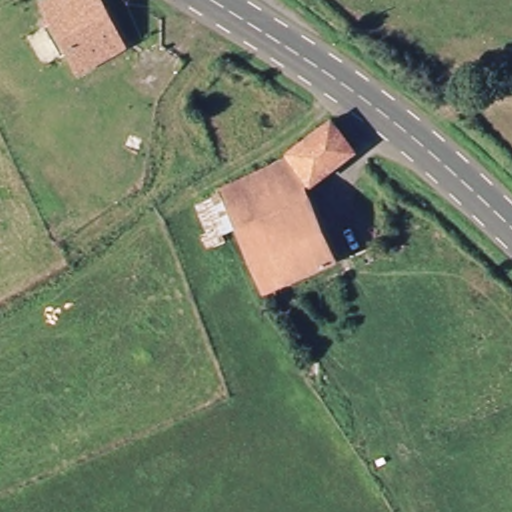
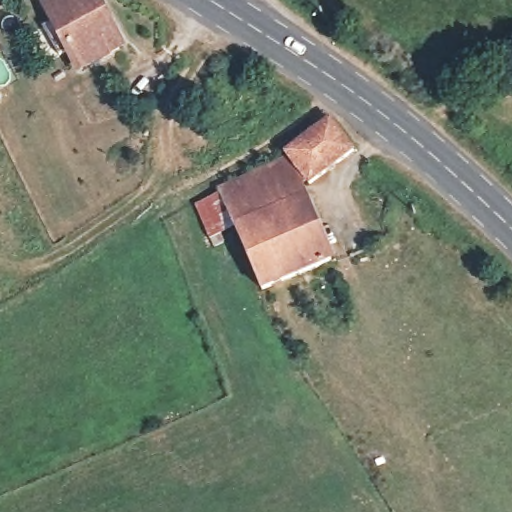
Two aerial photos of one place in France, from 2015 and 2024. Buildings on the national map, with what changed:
unchanged [(51,0),(99,0),(127,46),(82,71),(71,51),(61,58),(44,28),(54,23),(43,4),(51,0)]
unchanged [(288,159),(326,130),(338,139),(354,155),(312,188),(292,164),(288,159)]
unchanged [(302,196),(231,228),(218,197),(292,164),(312,188),(302,196)]
unchanged [(258,297),(231,228),(302,196),(331,268),(258,297)]

